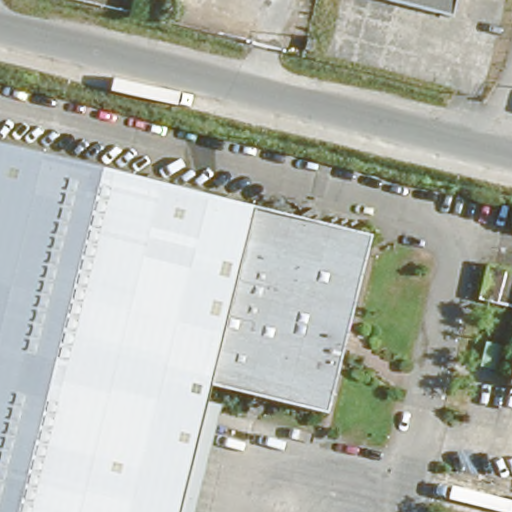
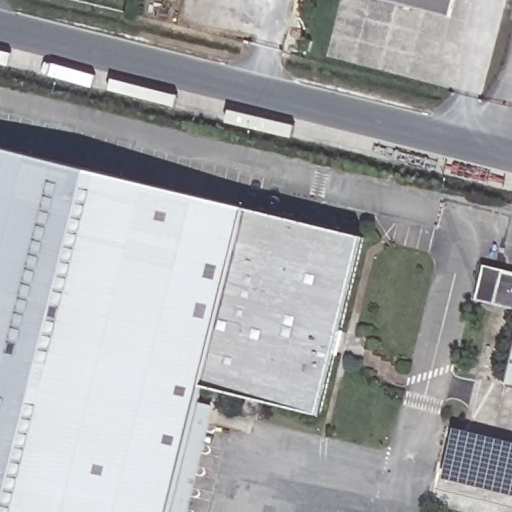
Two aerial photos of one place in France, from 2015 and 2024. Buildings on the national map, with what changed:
unchanged [(454,0),(451,12),(411,0),(454,0)]
unchanged [(354,408),(239,382),(207,512),(0,512),(0,143),(395,239),(354,408)]
unchanged [(473,291),(481,260),(512,268),(512,302),(473,291)]
unchanged [(508,381),(512,364),(512,381),(508,381)]
new [(445,479),(456,427),(512,441),(512,494),(445,479)]

